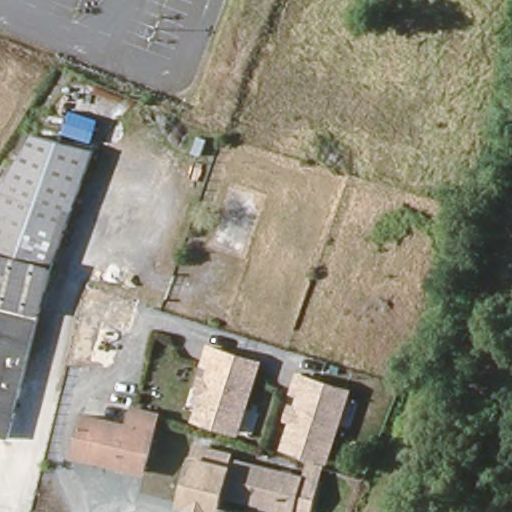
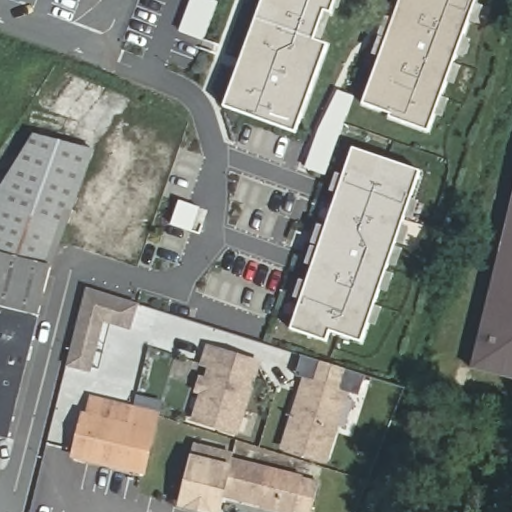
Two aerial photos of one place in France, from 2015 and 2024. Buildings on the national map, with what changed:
new [(323,43),(328,45),(297,133),(226,110),(226,108),(264,0),(338,0),(323,43)]
new [(430,132),(361,106),(402,0),(478,0),(430,132)]
new [(324,176),(304,169),(337,90),(354,96),(324,176)]
unchanged [(56,245),(52,255),(48,263),(43,277),(40,292),(38,297),(7,428),(6,433),(4,441),(0,440),(0,190),(31,141),(36,142),(39,134),(55,139),(52,147),(71,152),(74,144),(93,149),(90,156),(92,157),(56,245)]
new [(421,170),(365,345),(334,334),(328,345),(294,333),(351,147),(421,170)]
new [(512,200),(512,378),(471,369),(512,200)]
new [(131,331),(104,322),(91,372),(67,366),(86,288),(139,303),(131,331)]
demolished [(120,335),(112,364),(93,358),(101,329),(120,335)]
unchanged [(204,366),(207,355),(208,349),(212,350),(259,361),(241,431),(241,432),(198,422),(199,418),(205,394),(200,392),(203,380),(208,382),(212,368),(204,366)]
unchanged [(290,398),(294,382),(345,395),(327,465),(284,455),(291,427),(286,425),(289,413),(294,415),(298,400),(290,398)]
unchanged [(76,460),(86,420),(131,430),(135,415),(158,420),(159,420),(156,430),(145,477),(118,470),(76,460)]
unchanged [(198,451),(235,460),(234,465),(305,483),(308,468),(325,472),(321,487),(315,512),(277,512),(224,499),(221,512),(195,512),(183,509),(198,451)]

